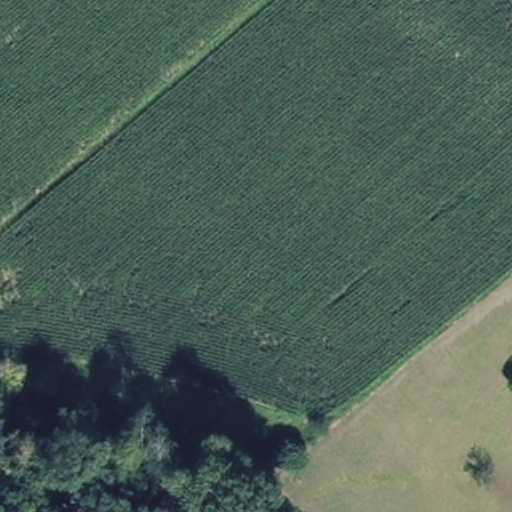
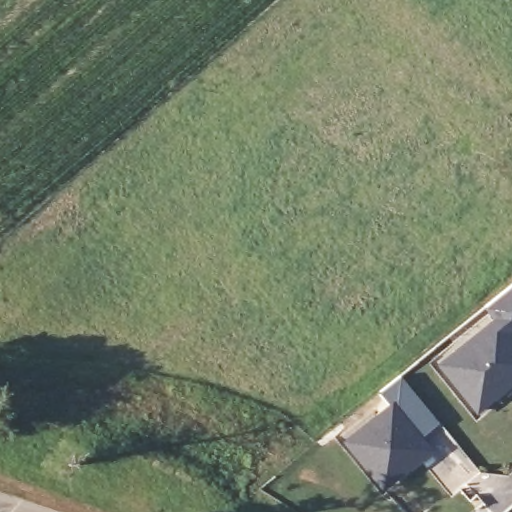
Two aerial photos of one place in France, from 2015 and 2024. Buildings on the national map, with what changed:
new [(439,362),(496,316),(486,303),(491,300),(495,296),(501,291),(505,287),(512,282),(512,330),(510,332),(512,336),(512,381),(493,396),(476,409),(439,362)]
new [(400,480),(383,495),(366,475),(341,445),(387,407),(376,395),(396,378),(418,405),(435,425),(416,440),(425,451),(403,469),(395,475),(400,480)]

